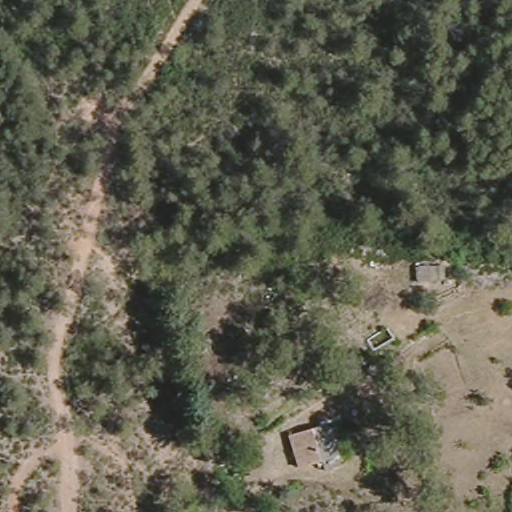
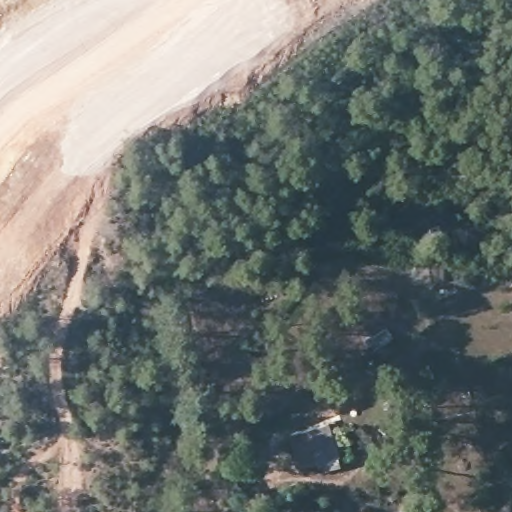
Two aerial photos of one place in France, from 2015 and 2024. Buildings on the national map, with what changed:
unchanged [(307,472),(306,465),(280,470),(272,437),(317,429),(323,470),(307,472)]

